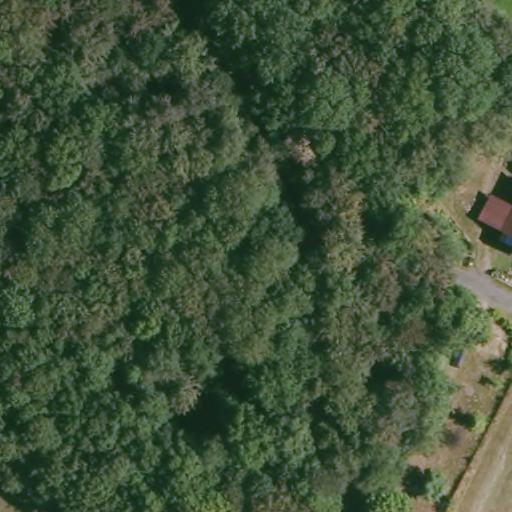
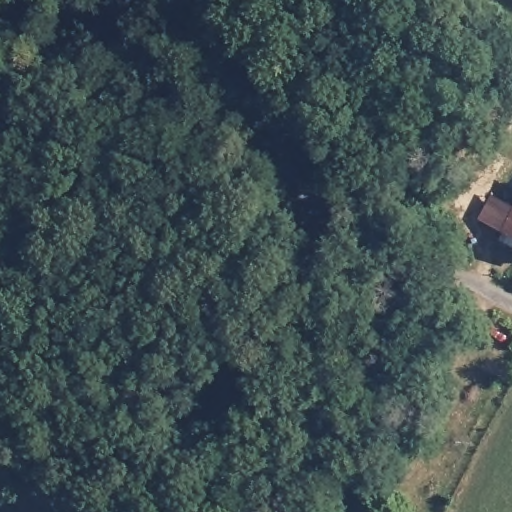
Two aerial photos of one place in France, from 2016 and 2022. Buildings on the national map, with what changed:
unchanged [(496,193),(512,202),(512,233),(505,229),(484,217),(496,193)]

